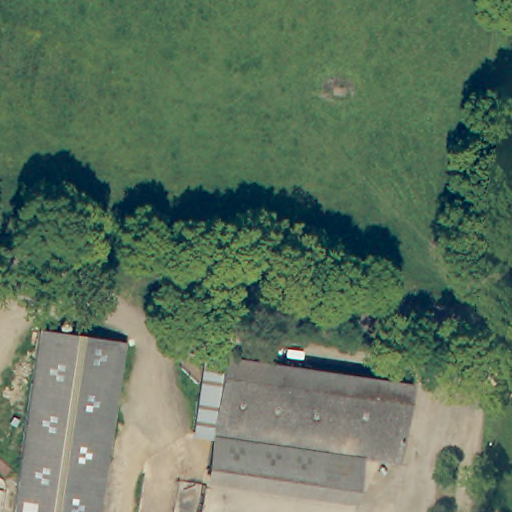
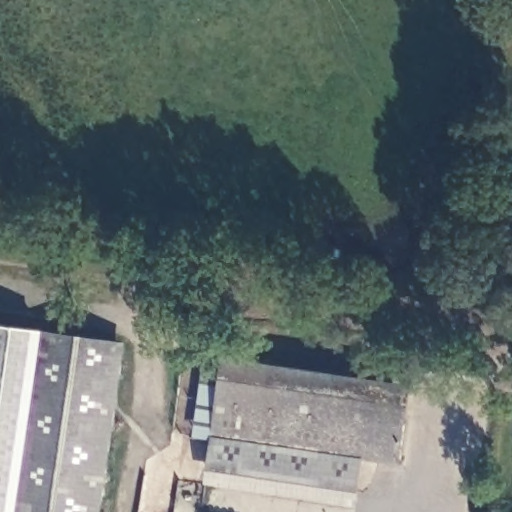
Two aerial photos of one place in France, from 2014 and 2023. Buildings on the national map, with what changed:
new [(39,331),(13,512),(0,512),(0,324),(39,329),(39,331)]
unchanged [(92,512),(13,512),(39,331),(116,342),(92,512)]
unchanged [(193,433),(204,355),(222,358),(217,396),(211,435),(193,433)]
unchanged [(358,458),(211,435),(217,396),(222,358),(282,367),(277,405),(403,424),(398,464),(358,458)]
unchanged [(409,385),(403,424),(277,405),(282,367),(409,385)]
unchanged [(358,458),(353,492),(206,469),(211,435),(358,458)]

